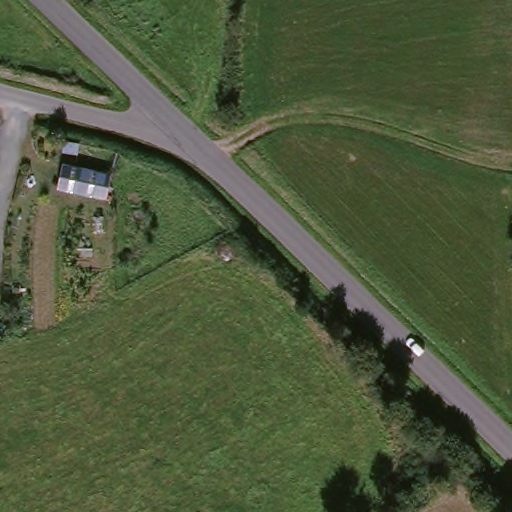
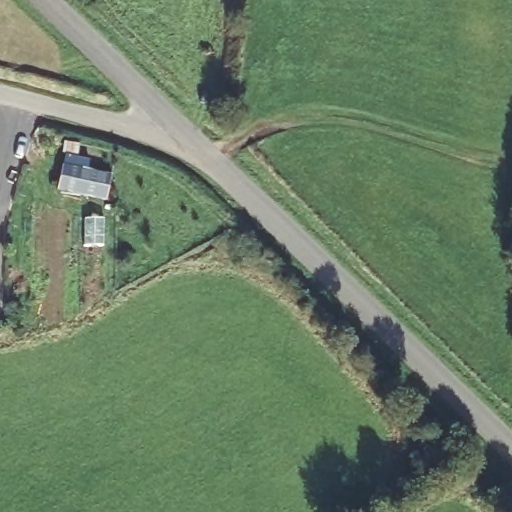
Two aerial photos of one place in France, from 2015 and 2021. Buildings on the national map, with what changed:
unchanged [(111,171),(107,198),(57,189),(62,162),(111,171)]

